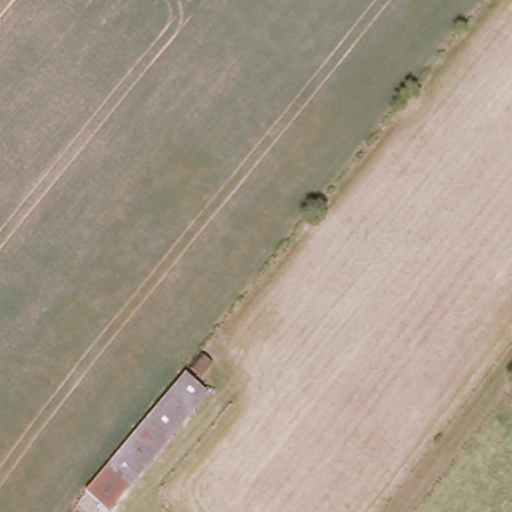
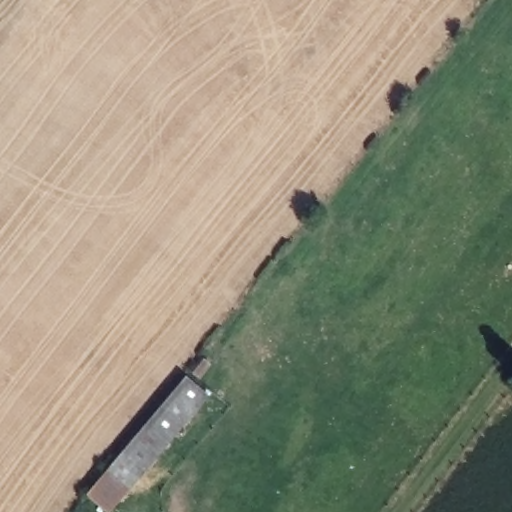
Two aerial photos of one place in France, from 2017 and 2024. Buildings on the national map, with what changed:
unchanged [(89,495),(204,355),(215,363),(199,384),(213,398),(114,512),(109,512),(89,495)]

